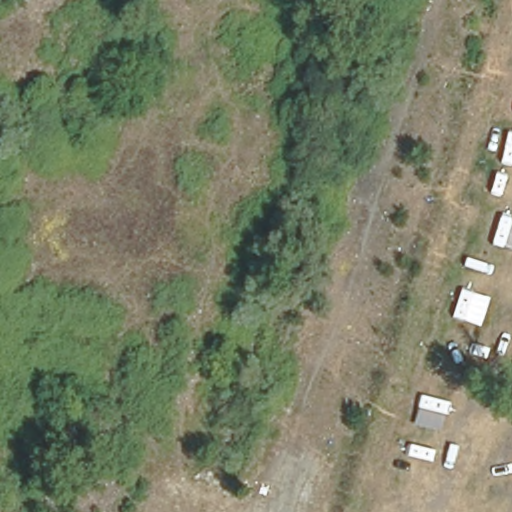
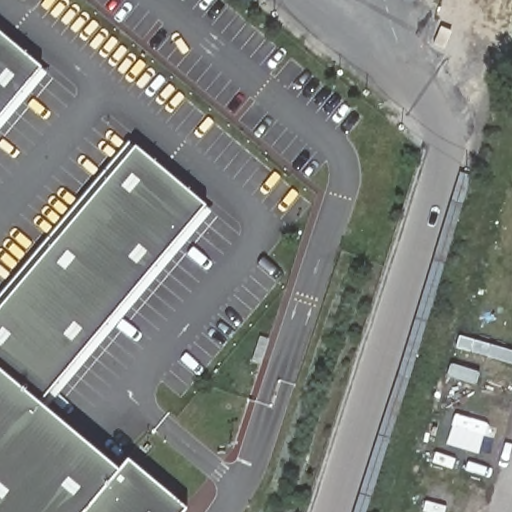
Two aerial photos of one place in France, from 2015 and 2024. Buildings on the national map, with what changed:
new [(41,70),(0,119),(0,34),(41,70)]
new [(205,207),(40,405),(0,371),(0,305),(132,147),(205,207)]
new [(40,405),(116,468),(80,512),(0,512),(0,371),(40,405)]
new [(184,512),(80,512),(116,468),(126,457),(186,510),(184,512)]

